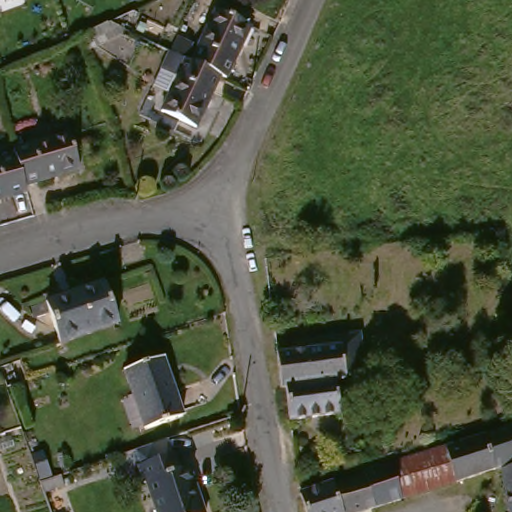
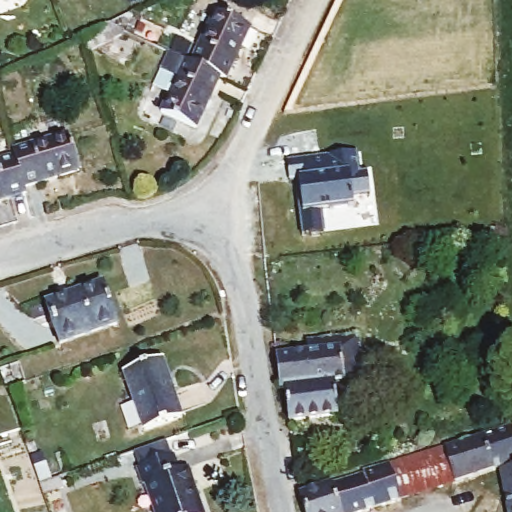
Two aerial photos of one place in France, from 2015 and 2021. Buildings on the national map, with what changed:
unchanged [(196,68),(190,64),(214,13),(249,29),(224,81),(219,78),(216,77),(207,73),(196,68)]
unchanged [(122,42),(120,47),(87,63),(82,47),(106,36),(107,35),(122,42)]
unchanged [(195,129),(160,112),(167,95),(151,88),(167,54),(180,60),(190,64),(196,68),(207,73),(216,77),(219,78),(195,129)]
unchanged [(15,156),(12,150),(67,134),(78,171),(24,186),(15,156)]
new [(298,192),(305,190),(304,180),(290,181),(288,160),(357,153),(359,173),(368,172),(370,194),(352,196),(353,208),(322,211),(324,233),(301,236),(298,192)]
unchanged [(25,192),(0,199),(0,160),(15,156),(24,186),(25,192)]
unchanged [(59,343),(45,302),(101,283),(115,323),(59,343)]
unchanged [(366,371),(337,380),(345,412),(296,426),(287,394),(282,396),(275,360),(302,355),(302,340),(355,326),(366,371)]
unchanged [(181,422),(144,434),(124,375),(161,362),(181,422)]
unchanged [(512,453),(512,466),(485,475),(473,441),(504,432),(512,453)]
unchanged [(480,477),(448,487),(435,453),(473,441),(485,475),(480,477)]
unchanged [(448,487),(414,498),(394,505),(381,468),(435,453),(448,487)]
unchanged [(187,471),(202,512),(154,512),(145,486),(142,487),(136,469),(173,457),(179,474),(187,471)]
unchanged [(356,478),(355,476),(381,468),(394,505),(367,512),(356,478)]
unchanged [(512,469),(512,512),(501,512),(494,476),(512,469)]
unchanged [(356,478),(367,512),(298,512),(293,498),(356,478)]
unchanged [(59,484),(63,495),(51,498),(56,512),(46,512),(39,491),(59,484)]

